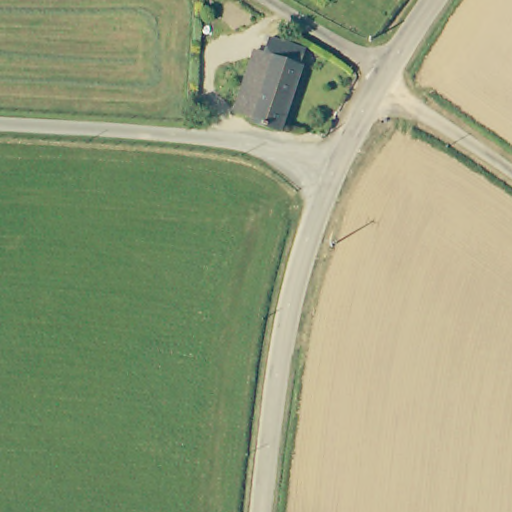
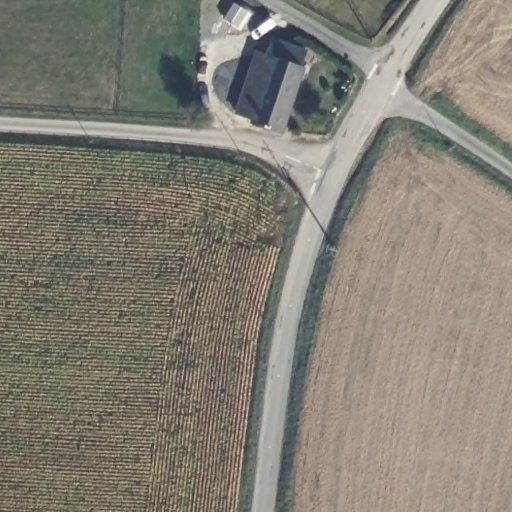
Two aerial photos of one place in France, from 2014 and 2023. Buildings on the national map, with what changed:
unchanged [(310,58),(281,133),(250,121),(251,119),(234,112),(256,48),(271,53),(275,43),(310,58)]

